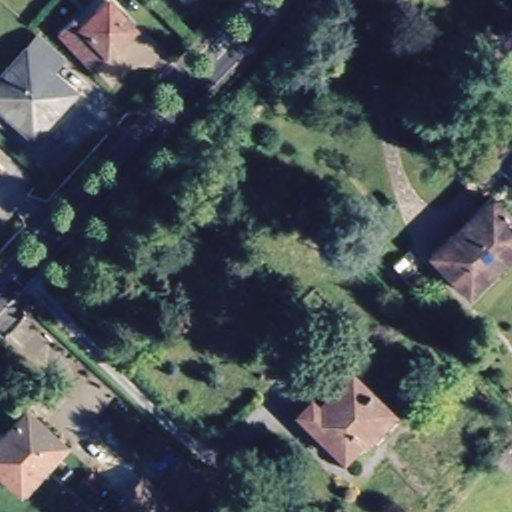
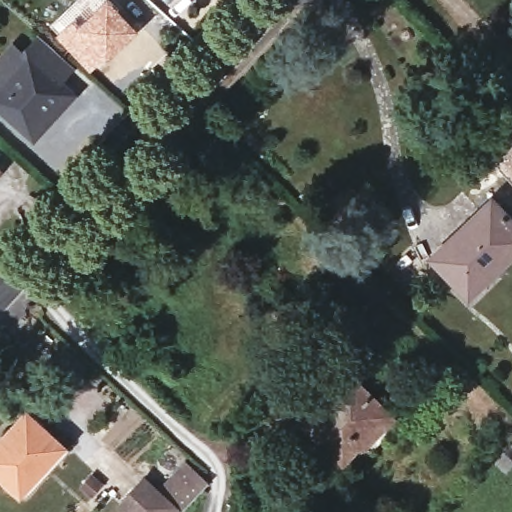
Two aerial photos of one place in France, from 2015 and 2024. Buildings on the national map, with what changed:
unchanged [(140,31),(97,74),(68,42),(81,27),(87,31),(115,2),(140,31)]
unchanged [(69,111),(41,142),(0,108),(0,92),(44,41),(64,60),(55,70),(66,80),(82,95),(69,111)]
unchanged [(512,184),(493,165),(512,146),(512,184)]
unchanged [(0,183),(0,173),(5,177),(0,183)]
unchanged [(472,214),(489,196),(512,220),(512,237),(484,266),(488,270),(471,287),(435,252),(453,232),(472,214)]
unchanged [(471,287),(488,270),(484,266),(512,237),(512,260),(478,295),(471,287)]
unchanged [(368,450),(357,438),(339,457),(297,408),(310,397),(316,403),(351,370),(387,407),(398,417),(368,450)]
unchanged [(37,409),(70,444),(25,494),(0,471),(0,447),(37,409)]
unchanged [(130,512),(123,505),(145,480),(160,494),(187,465),(209,485),(185,512),(130,512)]

